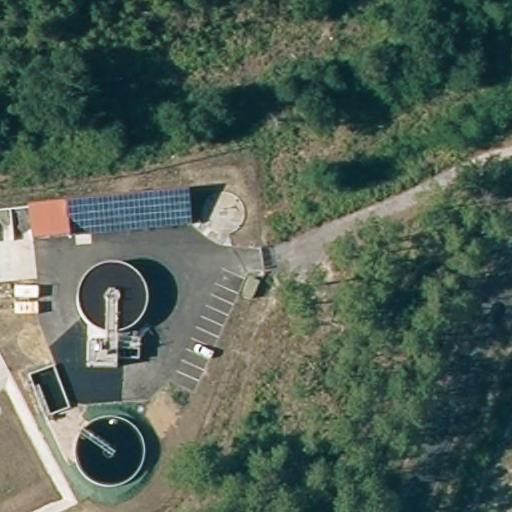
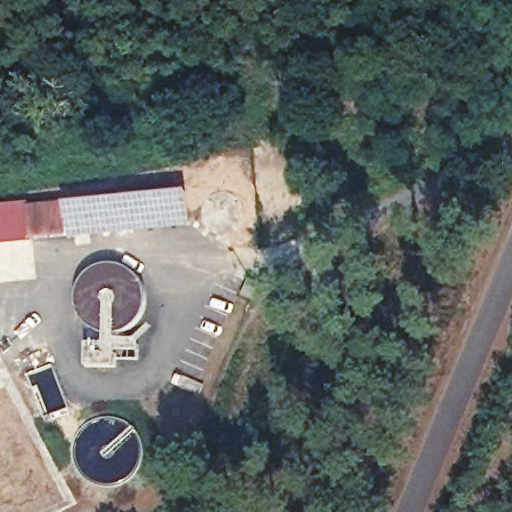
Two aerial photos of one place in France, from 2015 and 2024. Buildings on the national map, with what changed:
unchanged [(190,190),(192,224),(69,237),(32,240),(30,204),(190,190)]
new [(31,240),(0,244),(0,203),(27,200),(31,240)]

